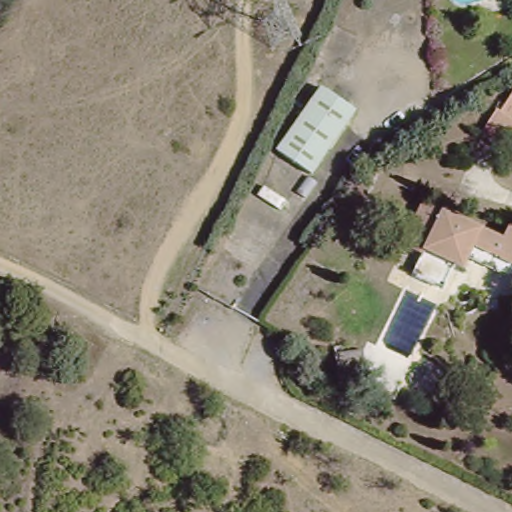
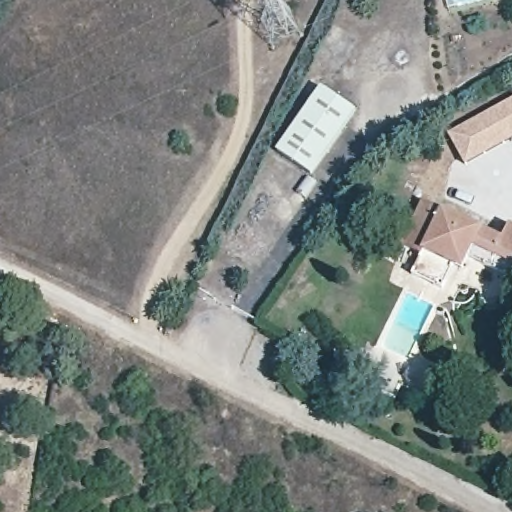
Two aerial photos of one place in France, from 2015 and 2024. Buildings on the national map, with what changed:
unchanged [(357,111),(312,173),(280,150),(325,90),(357,111)]
demolished [(502,107),(512,94),(512,138),(507,147),(483,131),(499,106),(502,107)]
new [(448,134),(512,99),(512,140),(465,165),(448,134)]
unchanged [(408,278),(415,260),(397,250),(420,205),(500,242),(507,230),(512,232),(512,281),(509,286),(465,262),(452,268),(440,293),(408,278)]
unchanged [(42,315),(57,323),(52,338),(36,329),(42,315)]
new [(367,352),(370,378),(367,376),(342,380),(339,355),(367,352)]
unchanged [(425,358),(452,377),(432,406),(405,387),(425,358)]

